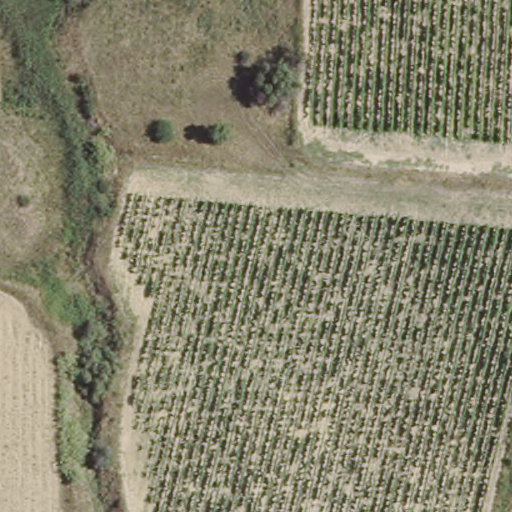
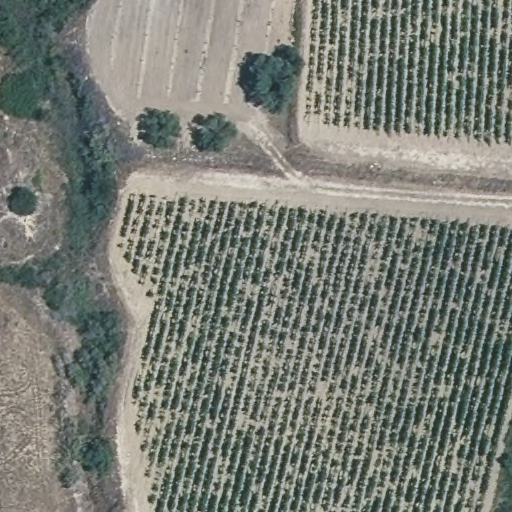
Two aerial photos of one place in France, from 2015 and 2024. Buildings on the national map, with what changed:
[]

